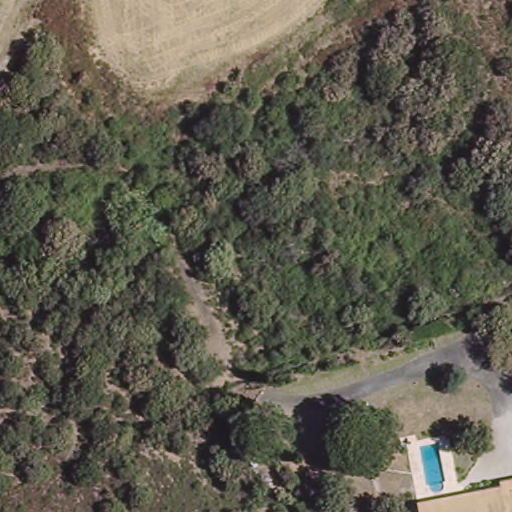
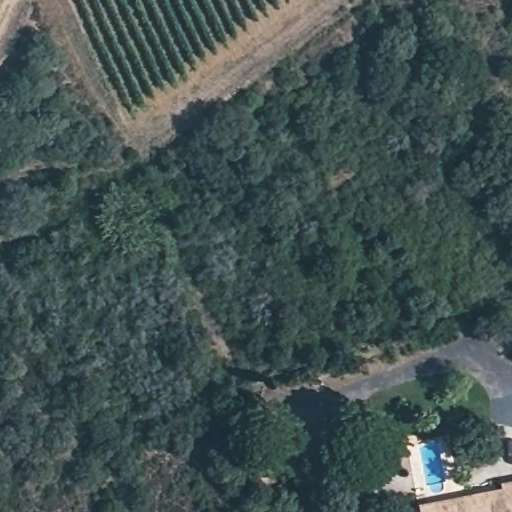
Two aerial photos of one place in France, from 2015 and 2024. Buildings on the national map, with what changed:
unchanged [(500,488),(500,483),(512,481),(512,512),(419,512),(418,505),(500,488)]

